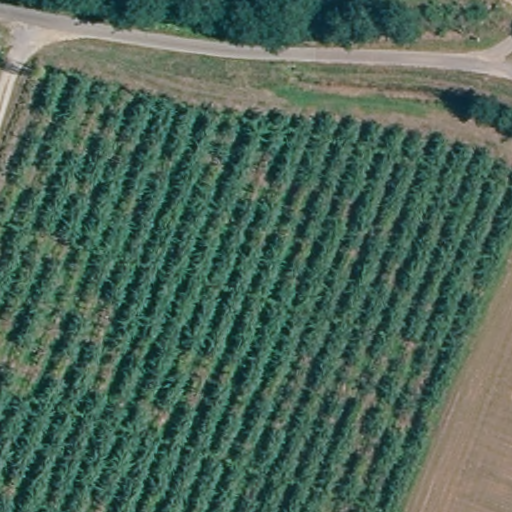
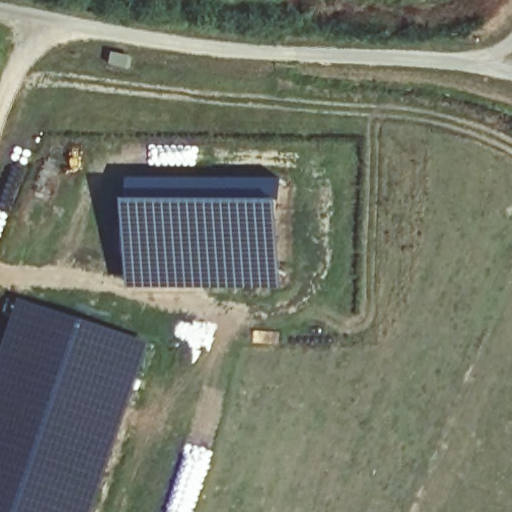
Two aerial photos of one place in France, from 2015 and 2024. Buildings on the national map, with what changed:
new [(288,292),(134,294),(133,184),(288,183),(288,292)]
new [(155,345),(100,512),(0,512),(0,370),(23,301),(155,345)]

